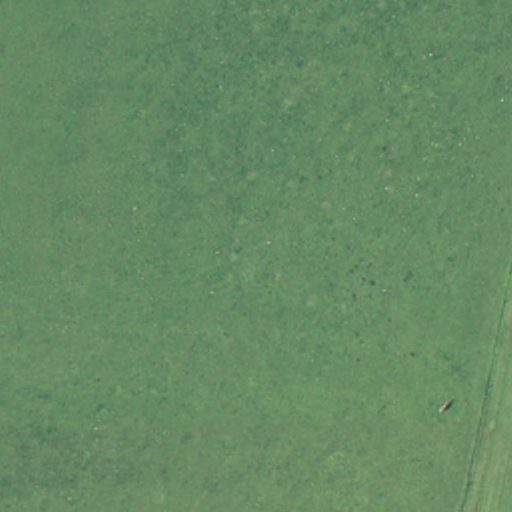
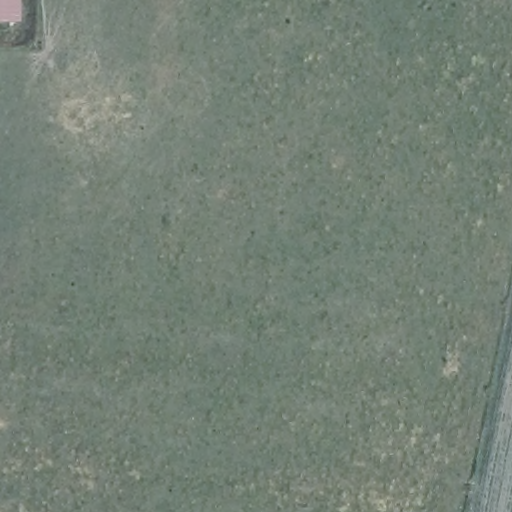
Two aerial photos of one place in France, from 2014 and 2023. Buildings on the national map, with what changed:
new [(0,23),(0,0),(15,0),(15,22),(0,23)]

